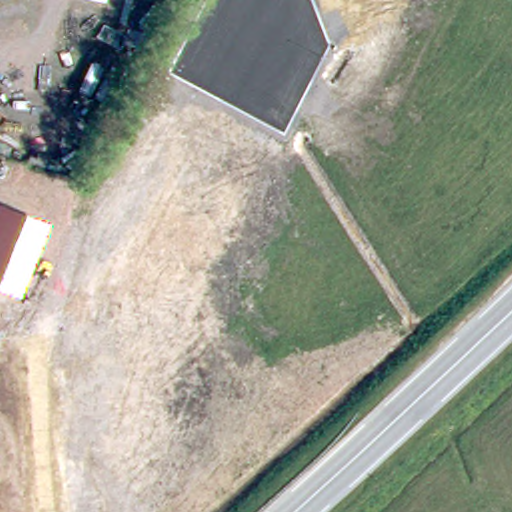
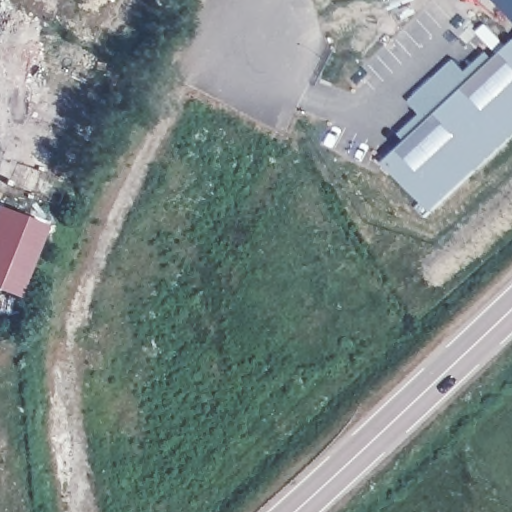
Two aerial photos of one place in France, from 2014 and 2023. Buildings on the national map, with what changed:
new [(469,71),(492,51),(500,60),(512,48),(512,137),(434,209),(389,162),(412,141),(404,132),(424,115),(412,100),(458,59),(469,71)]
unchanged [(16,296),(0,289),(0,206),(47,225),(16,296)]

